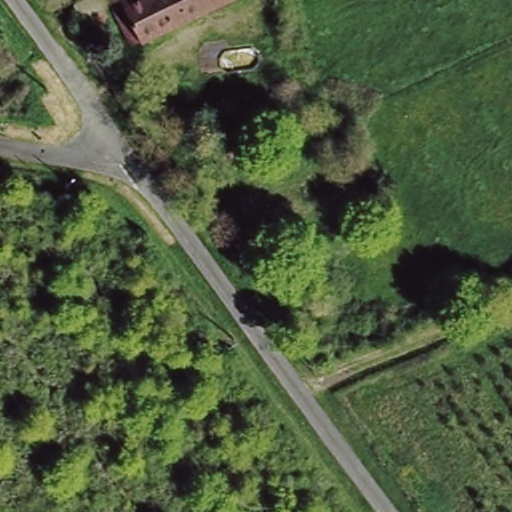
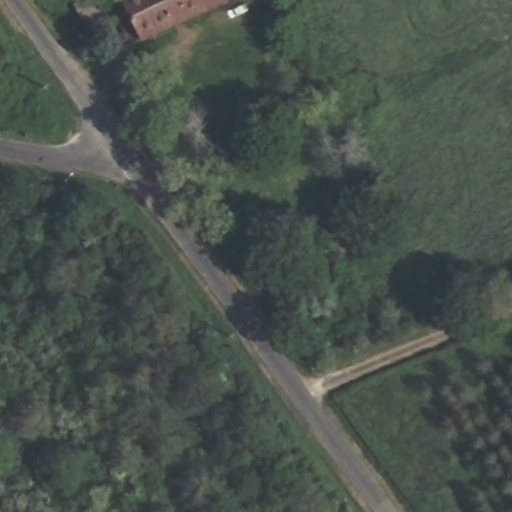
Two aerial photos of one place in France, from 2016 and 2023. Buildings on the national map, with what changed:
unchanged [(123,0),(209,0),(140,34),(123,0)]

